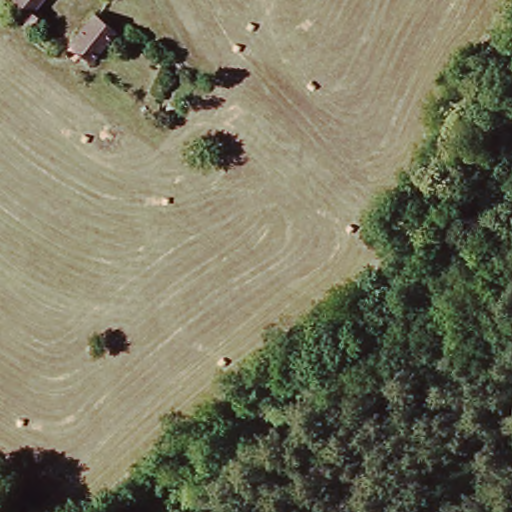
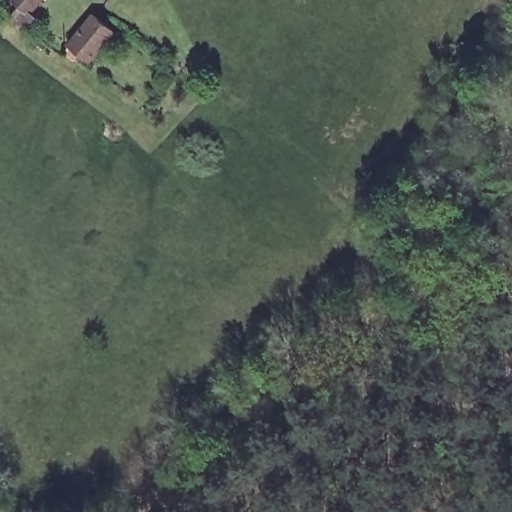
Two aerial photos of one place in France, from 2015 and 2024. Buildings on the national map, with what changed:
unchanged [(42,0),(36,7),(52,21),(40,37),(15,17),(22,1),(21,0),(42,0)]
unchanged [(107,0),(113,0),(112,3),(107,0)]
unchanged [(94,22),(110,35),(87,67),(69,54),(94,22)]

